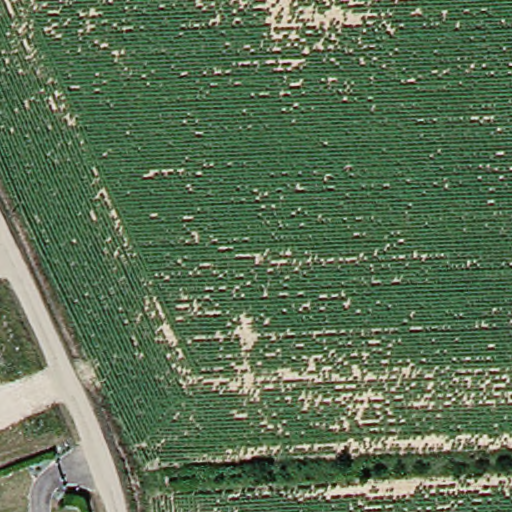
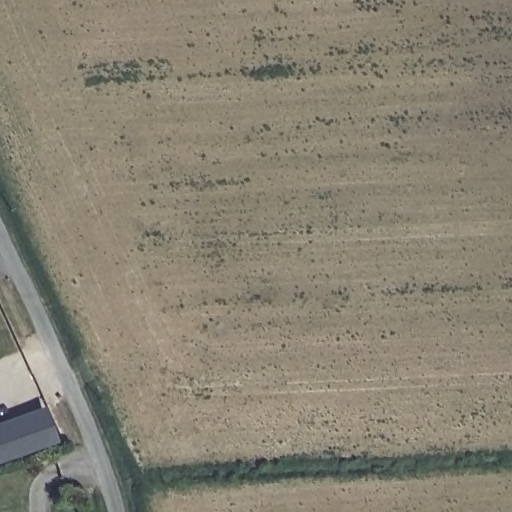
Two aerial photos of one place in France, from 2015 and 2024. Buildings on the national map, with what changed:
new [(44,409),(55,442),(0,462),(0,425),(44,409)]

